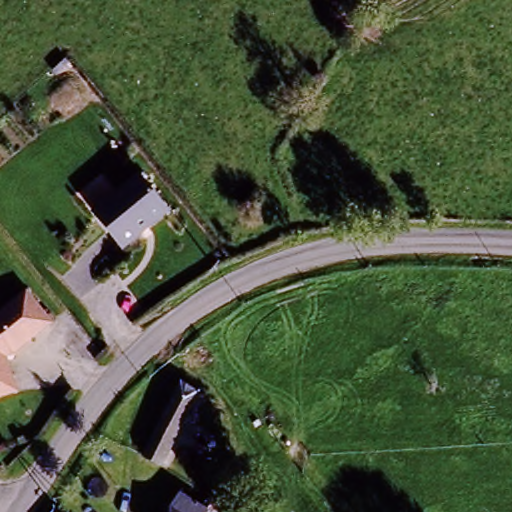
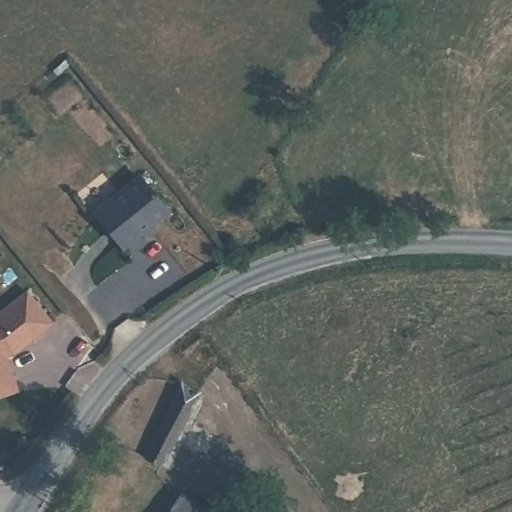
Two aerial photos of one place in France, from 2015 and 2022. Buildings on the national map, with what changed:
unchanged [(170,213),(121,252),(92,215),(139,175),(170,213)]
unchanged [(24,340),(22,338),(14,342),(29,380),(0,390),(0,308),(1,308),(34,279),(60,309),(24,340)]
unchanged [(199,389),(161,460),(145,452),(181,378),(199,389)]
unchanged [(167,511),(175,494),(201,511),(210,499),(228,512),(166,512),(167,511)]

